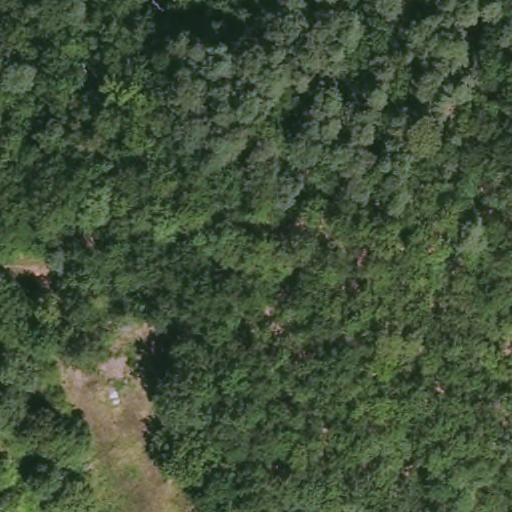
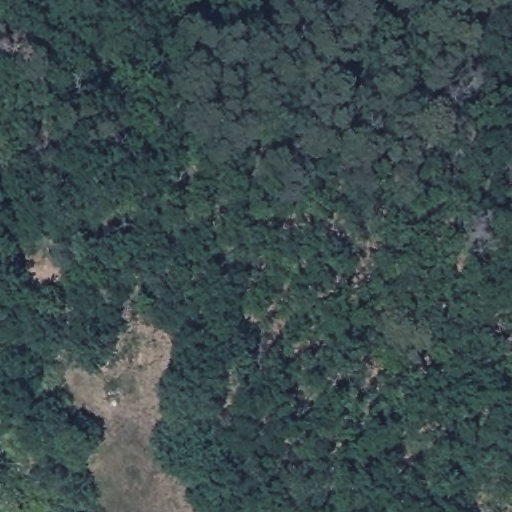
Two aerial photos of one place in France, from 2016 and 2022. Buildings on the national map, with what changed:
unchanged [(137,359),(140,384),(108,387),(104,364),(137,359)]

